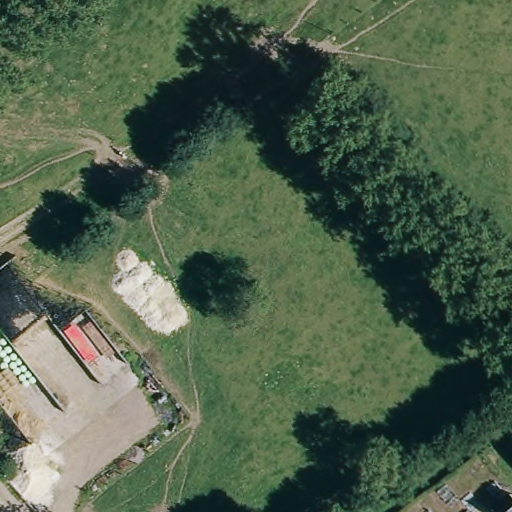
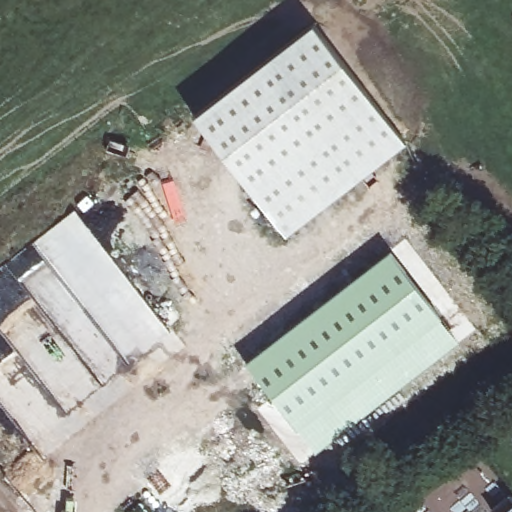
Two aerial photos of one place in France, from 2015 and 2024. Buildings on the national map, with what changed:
new [(197,114),(208,105),(210,108),(312,29),(404,145),(287,236),(242,179),(245,175),(228,151),(197,114)]
new [(459,339),(317,452),(247,362),(390,250),(459,339)]
demolished [(512,433),(512,435),(511,434),(512,433)]
unchanged [(512,512),(494,512),(492,510),(510,495),(512,496),(512,512)]

